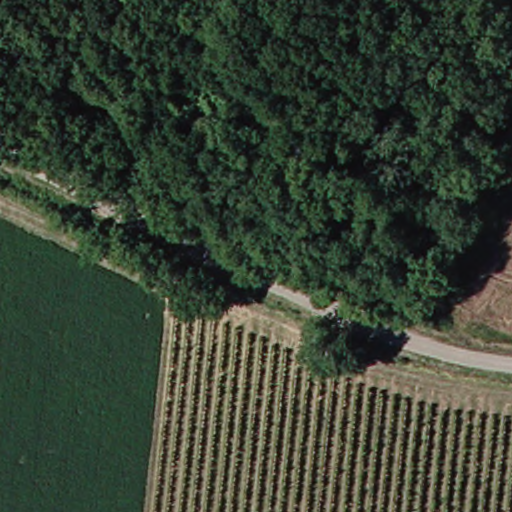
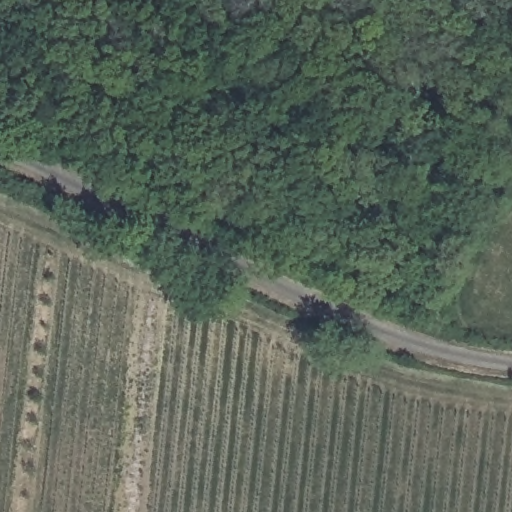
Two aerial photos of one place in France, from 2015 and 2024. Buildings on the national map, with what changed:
[]

